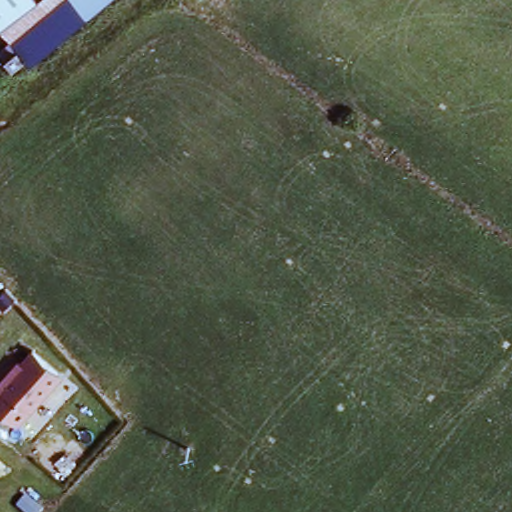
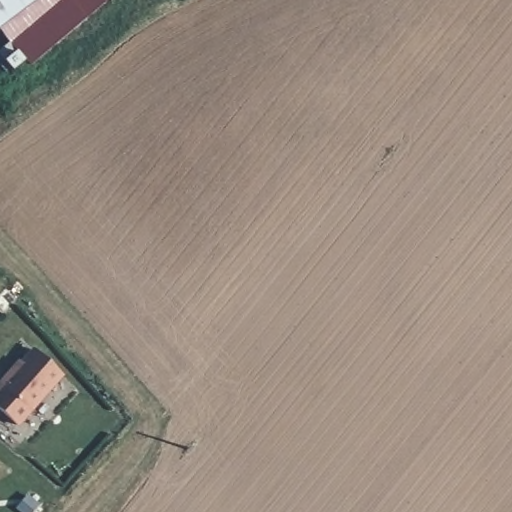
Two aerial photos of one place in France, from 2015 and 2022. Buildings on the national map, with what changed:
unchanged [(0,27),(0,0),(35,0),(0,27)]
unchanged [(1,38),(0,38),(0,36),(42,0),(97,0),(23,64),(15,55),(0,68),(0,43),(2,41),(1,38)]
unchanged [(0,387),(34,350),(63,377),(17,429),(0,412),(0,387)]

